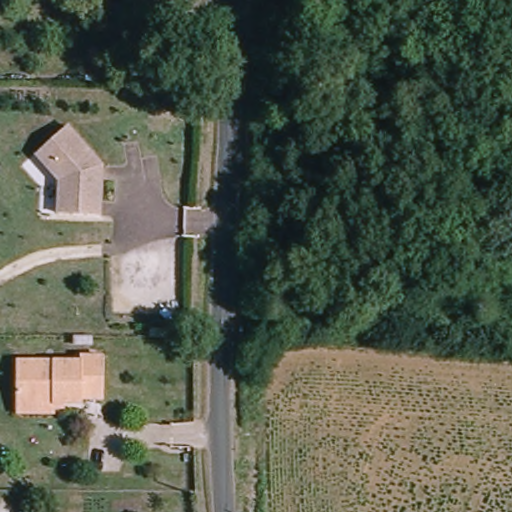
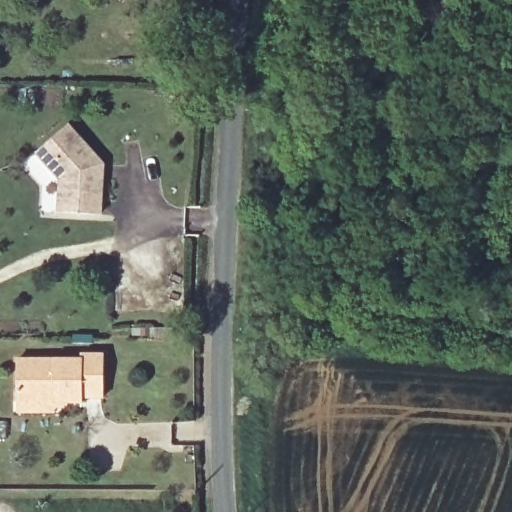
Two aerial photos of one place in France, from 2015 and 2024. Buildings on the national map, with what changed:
unchanged [(96,166),(95,174),(102,174),(101,209),(60,208),(61,174),(37,150),(67,122),(103,160),(96,166)]
unchanged [(18,412),(17,404),(17,358),(75,357),(75,348),(99,347),(97,397),(73,398),(72,403),(48,403),(48,413),(18,412)]

